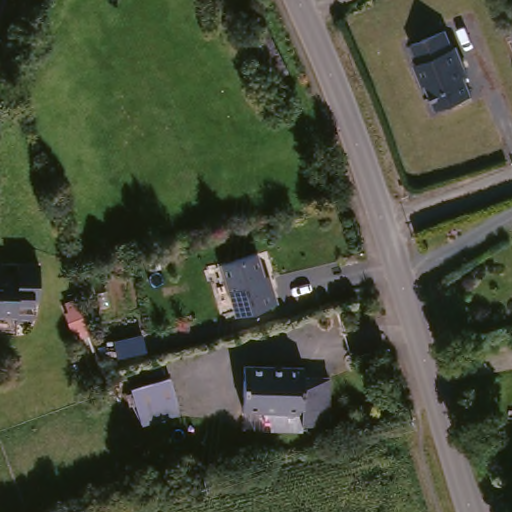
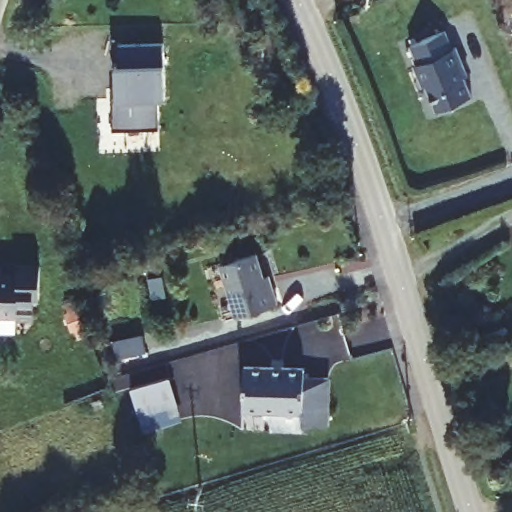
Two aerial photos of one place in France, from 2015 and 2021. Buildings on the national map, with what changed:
unchanged [(272,106),(261,85),(238,39),(263,26),(284,75),(278,78),(287,99),(272,106)]
unchanged [(442,34),(449,52),(453,50),(465,78),(461,80),(469,99),(434,113),(423,88),(420,89),(411,68),(415,66),(408,48),(442,34)]
new [(111,100),(115,100),(113,66),(117,66),(117,46),(162,45),(163,66),(164,100),(156,100),(157,129),(113,129),(111,100)]
unchanged [(261,254),(273,292),(278,290),(283,305),(242,318),(226,265),(261,254)]
unchanged [(28,274),(29,262),(51,262),(49,300),(42,300),(41,317),(26,318),(26,311),(0,311),(0,263),(11,263),(10,274),(28,274)]
unchanged [(305,365),(305,374),(330,375),(329,422),(302,422),(303,409),(244,407),(245,364),(305,365)]
unchanged [(172,381),(180,409),(142,421),(133,392),(172,381)]

